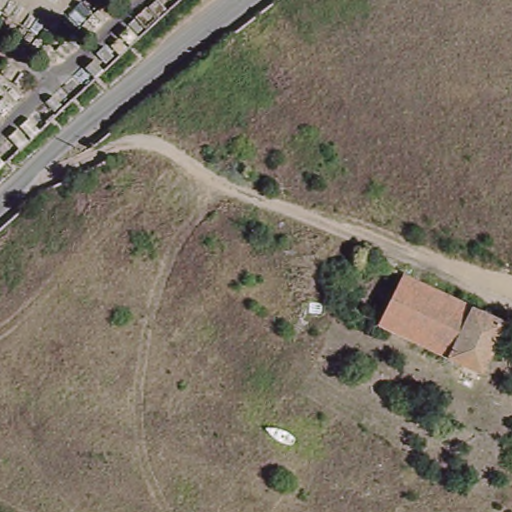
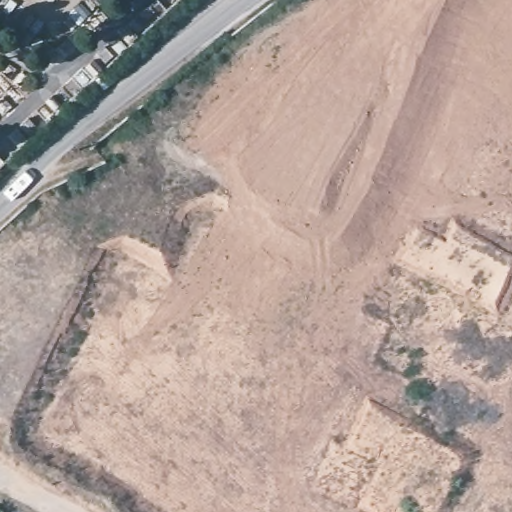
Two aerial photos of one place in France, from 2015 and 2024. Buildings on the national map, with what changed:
demolished [(482,368),(378,319),(403,269),(505,318),(482,368)]

